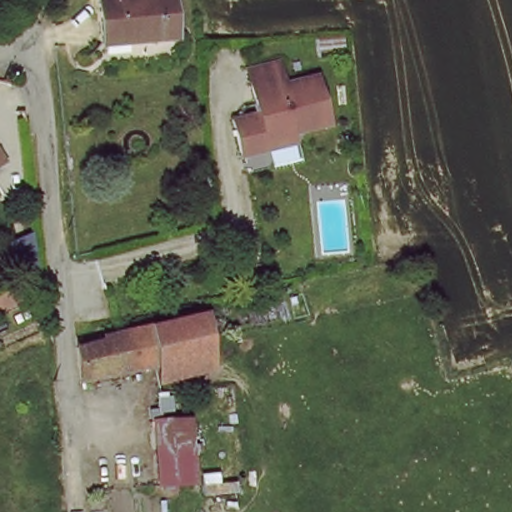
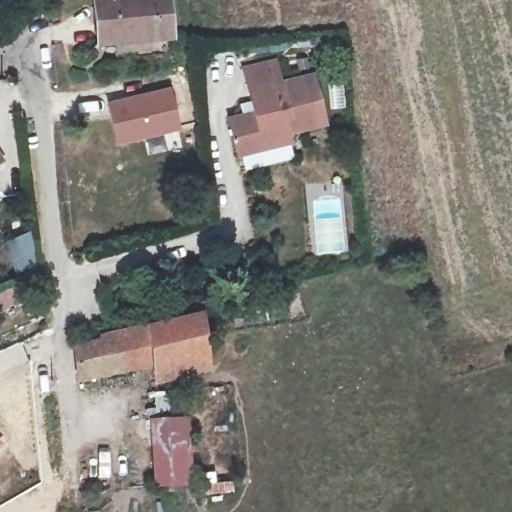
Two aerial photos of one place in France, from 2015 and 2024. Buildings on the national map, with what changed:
unchanged [(99,0),(166,0),(172,36),(127,43),(125,32),(97,37),(92,1),(99,0)]
unchanged [(235,126),(267,115),(264,105),(257,108),(250,87),(280,77),(283,86),(315,76),(330,123),(282,138),(285,147),(246,160),(235,126)]
new [(168,87),(180,130),(117,146),(106,102),(168,87)]
unchanged [(0,172),(0,162),(3,170),(0,172)]
unchanged [(0,314),(0,293),(10,289),(15,305),(0,314)]
unchanged [(150,377),(147,366),(72,381),(67,349),(94,347),(92,333),(201,310),(212,361),(150,377)]
unchanged [(162,487),(155,432),(153,425),(185,417),(185,425),(192,478),(162,487)]
new [(0,449),(0,440),(5,445),(0,449)]

